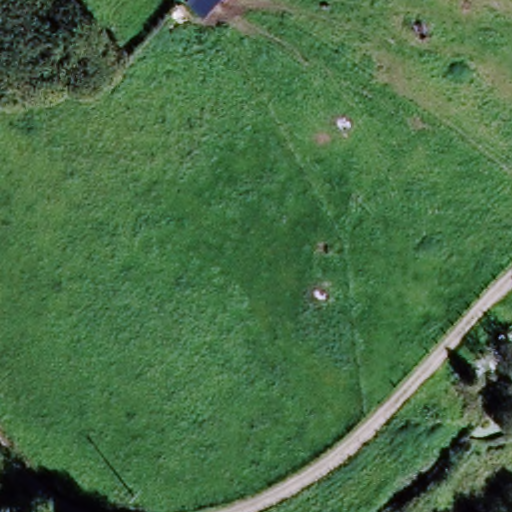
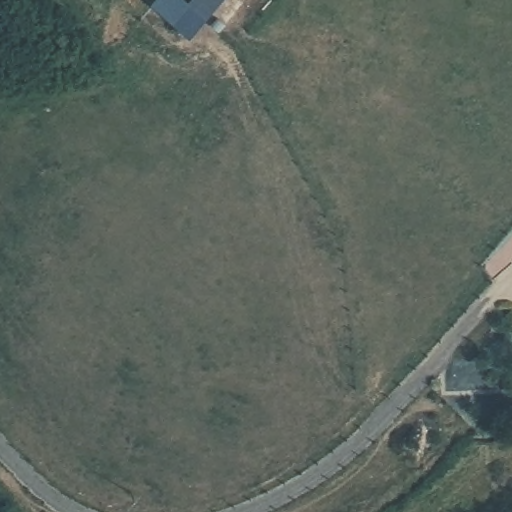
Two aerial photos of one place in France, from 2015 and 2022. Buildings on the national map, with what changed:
new [(187,40),(148,3),(150,0),(186,0),(187,0),(222,0),(187,40)]

